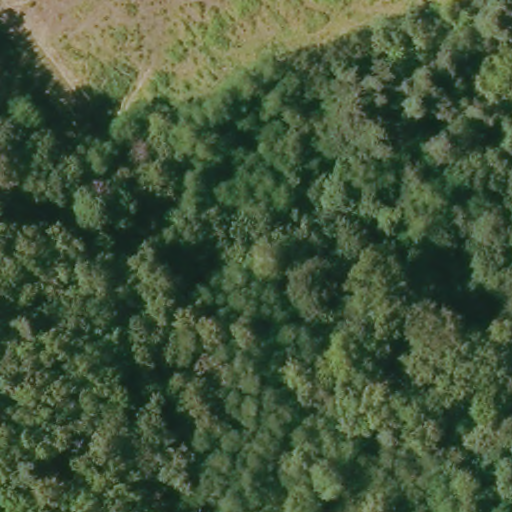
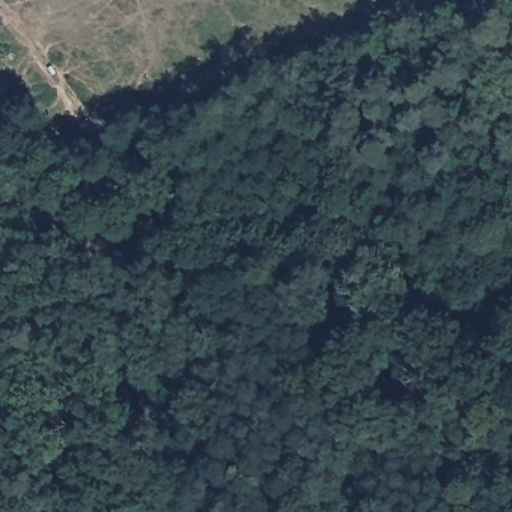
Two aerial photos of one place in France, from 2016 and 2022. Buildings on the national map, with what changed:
[]

